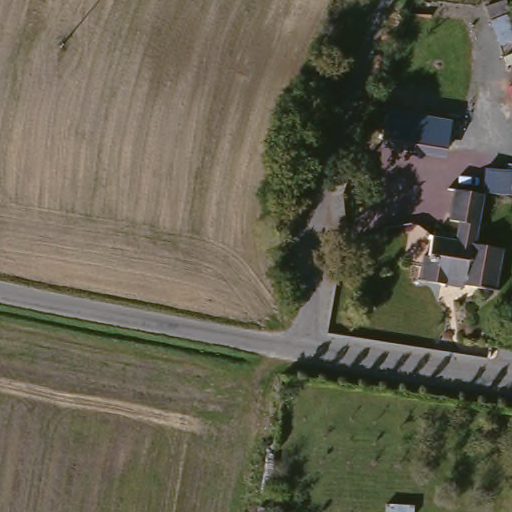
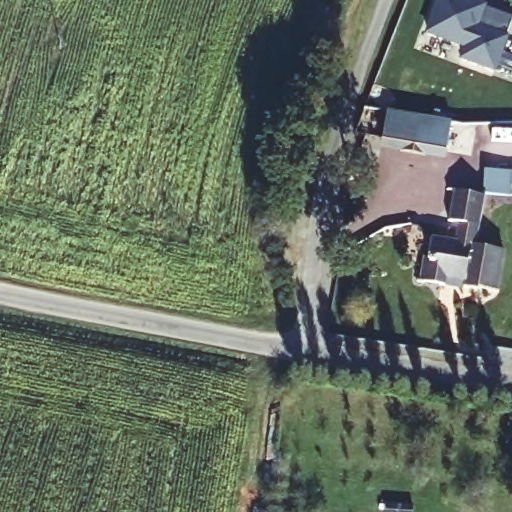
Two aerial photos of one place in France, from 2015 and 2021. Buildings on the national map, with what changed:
new [(488,4),(482,25),(510,35),(497,73),(459,60),(463,49),(425,34),(437,0),(476,0),(488,4)]
unchanged [(445,159),(382,148),(388,112),(452,121),(445,159)]
unchanged [(483,193),(485,168),(512,170),(512,195),(483,193)]
unchanged [(476,247),(506,250),(498,295),(463,291),(464,286),(446,283),(443,292),(418,289),(422,261),(427,263),(432,241),(453,244),(456,228),(445,227),(452,193),(484,197),(476,247)]

